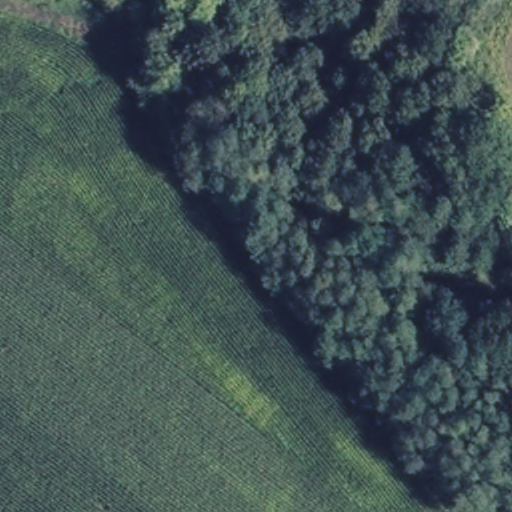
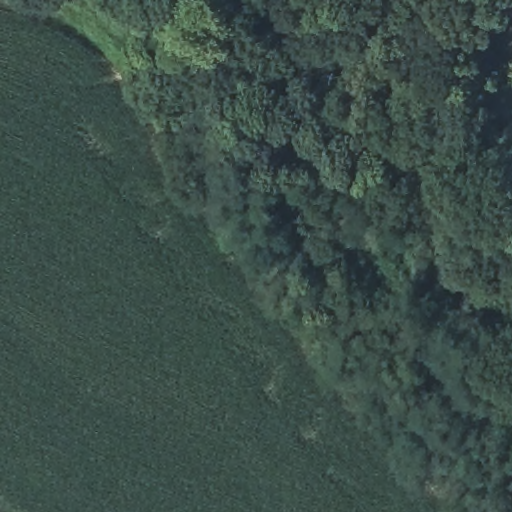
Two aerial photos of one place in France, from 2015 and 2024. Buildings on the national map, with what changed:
unchanged [(150,54),(126,70),(113,48),(138,30),(150,54)]

